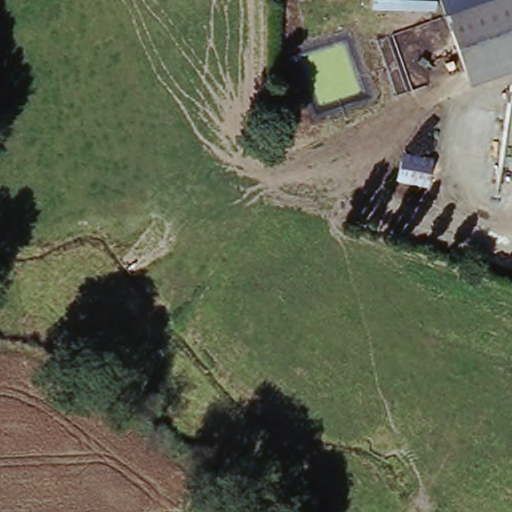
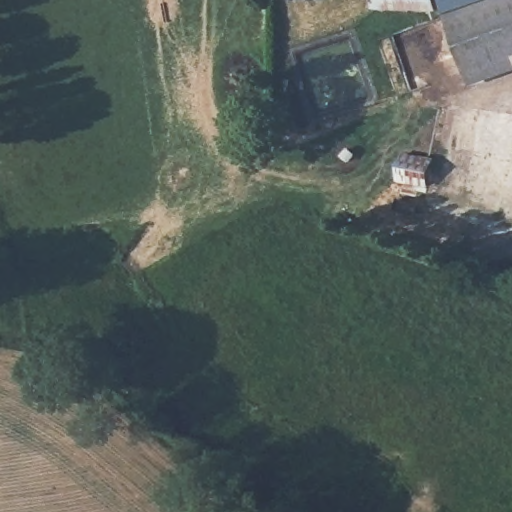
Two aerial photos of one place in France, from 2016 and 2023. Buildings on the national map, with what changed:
unchanged [(385,6),(384,0),(440,0),(439,9),(385,6)]
unchanged [(439,9),(440,0),(507,0),(451,20),(439,9)]
unchanged [(512,0),(512,60),(470,74),(451,20),(507,0),(512,0)]
unchanged [(385,177),(387,150),(402,152),(433,156),(431,184),(398,179),(385,177)]

